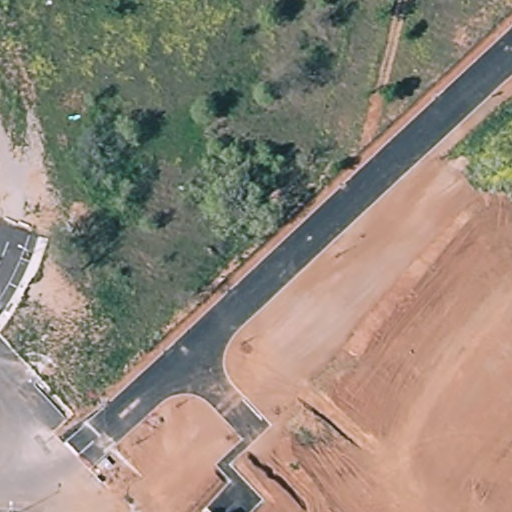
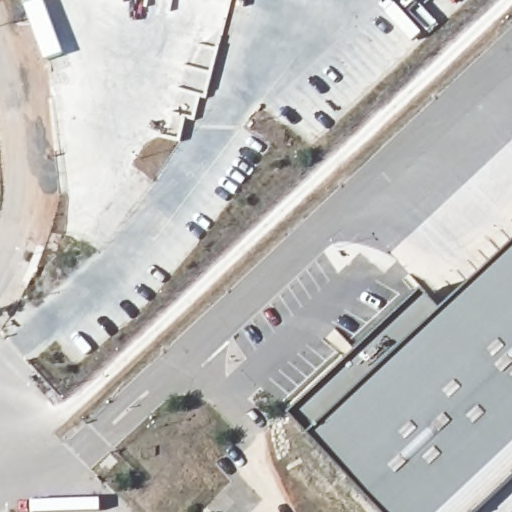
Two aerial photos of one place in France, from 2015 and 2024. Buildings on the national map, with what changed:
new [(313,437),(293,416),(424,292),(445,314),(512,251),(512,512),(384,512),(313,437)]

